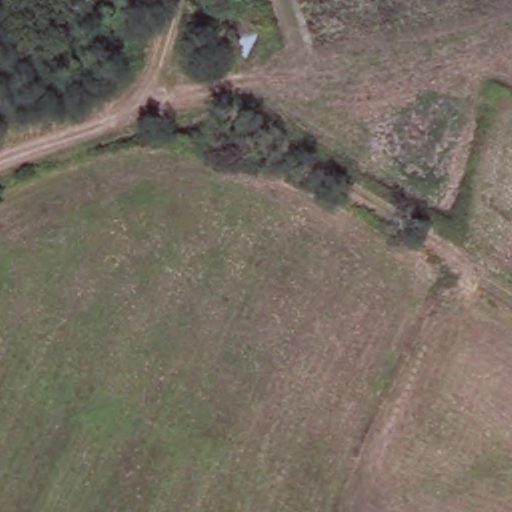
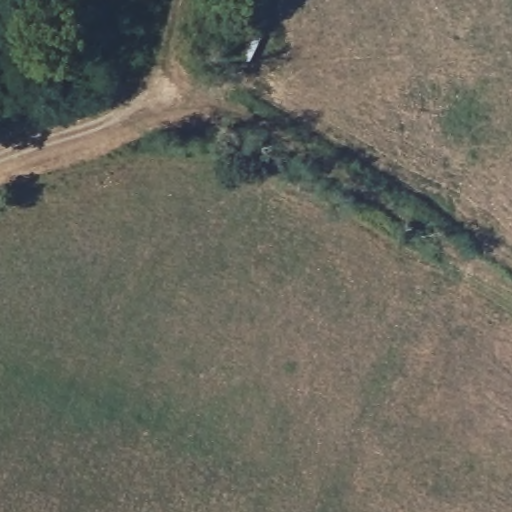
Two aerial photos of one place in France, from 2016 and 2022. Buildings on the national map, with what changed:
unchanged [(269,30),(251,66),(226,55),(242,17),(269,30)]

